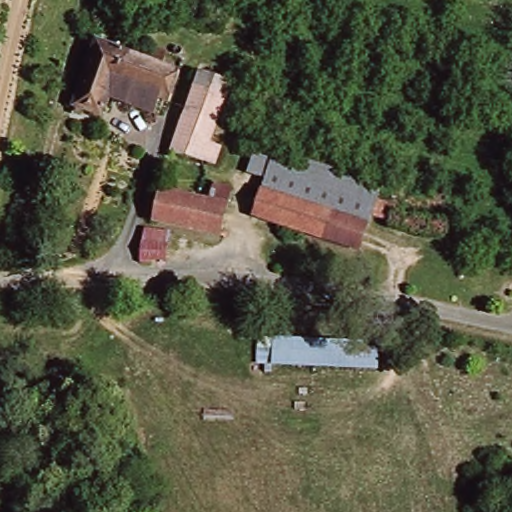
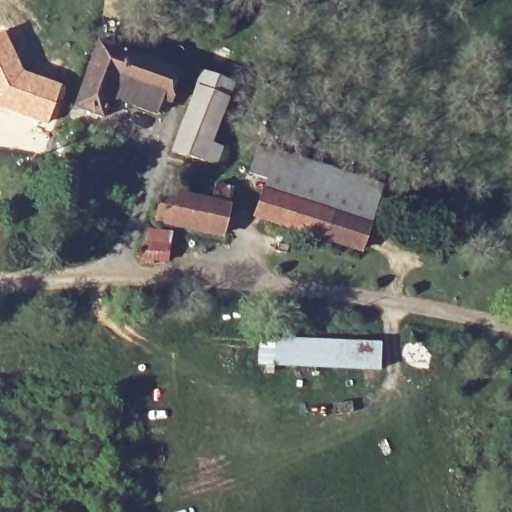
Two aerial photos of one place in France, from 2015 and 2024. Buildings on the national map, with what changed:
new [(2,27),(22,70),(61,85),(46,125),(0,109),(0,28),(2,27)]
unchanged [(160,64),(176,71),(166,101),(155,97),(150,112),(105,97),(98,116),(73,105),(96,41),(144,56),(148,45),(165,51),(160,64)]
unchanged [(202,72),(232,84),(210,142),(221,145),(216,162),(172,151),(202,72)]
unchanged [(269,148),(268,164),(306,174),(291,226),(256,214),(266,177),(248,172),(257,144),(269,148)]
unchanged [(381,186),(378,194),(306,174),(268,164),(269,148),(381,186)]
unchanged [(360,249),(291,226),(306,174),(378,194),(360,249)]
unchanged [(214,183),(233,187),(221,234),(153,215),(161,187),(211,200),(214,183)]
unchanged [(157,257),(157,262),(142,262),(147,227),(173,229),(168,257),(157,257)]
unchanged [(369,369),(267,364),(269,339),(370,343),(369,369)]

